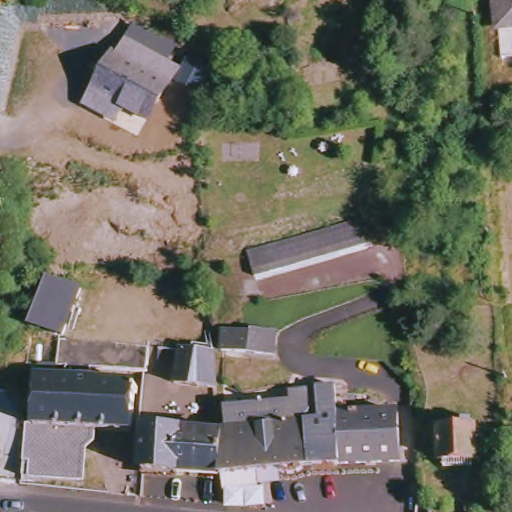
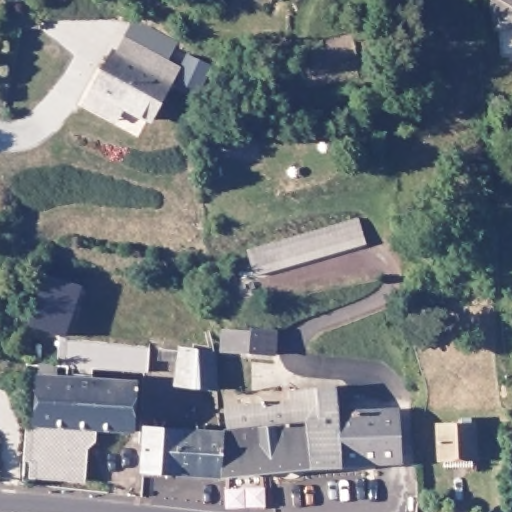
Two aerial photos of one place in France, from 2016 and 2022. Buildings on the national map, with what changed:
unchanged [(502,53),(499,0),(512,0),(512,53),(502,53)]
unchanged [(80,103),(112,45),(117,48),(122,36),(178,67),(149,123),(120,110),(113,123),(80,103)]
unchanged [(252,276),(244,249),(355,217),(362,245),(252,276)]
unchanged [(79,294),(66,339),(32,330),(41,306),(49,285),(79,294)]
unchanged [(277,341),(274,362),(223,358),(224,338),(277,341)]
unchanged [(117,347),(153,350),(150,376),(98,373),(97,385),(140,388),(138,435),(101,433),(100,449),(91,450),(87,482),(30,472),(27,432),(34,428),(37,382),(26,380),(26,368),(65,371),(67,346),(117,347)]
unchanged [(191,352),(215,357),(216,393),(177,388),(182,366),(158,362),(158,349),(191,352)]
unchanged [(338,389),(342,414),(397,411),(402,461),(329,465),(322,390),(338,389)]
unchanged [(228,475),(225,430),(230,430),(228,409),(293,402),(292,390),(322,390),(329,465),(228,475)]
unchanged [(476,426),(477,460),(472,460),(472,466),(445,465),(445,459),(440,459),(440,426),(476,426)]
unchanged [(223,434),(221,477),(147,470),(150,444),(152,429),(223,434)]

